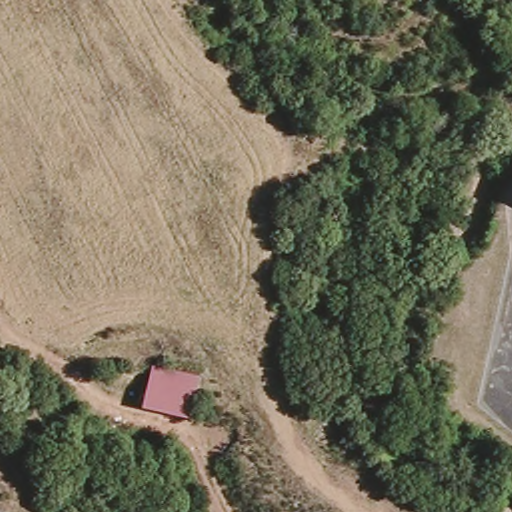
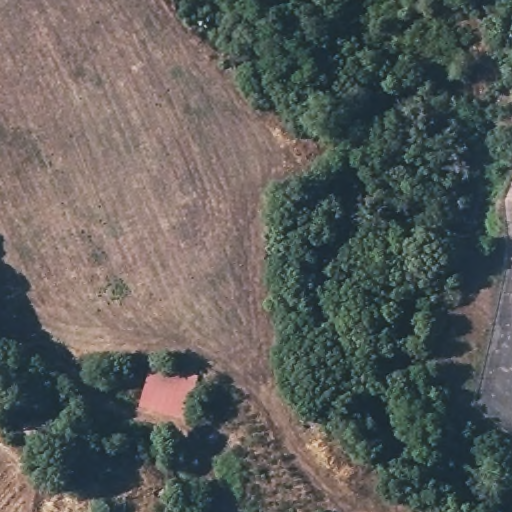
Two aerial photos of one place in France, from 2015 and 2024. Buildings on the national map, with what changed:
unchanged [(195,376),(189,420),(140,408),(150,366),(195,376)]

